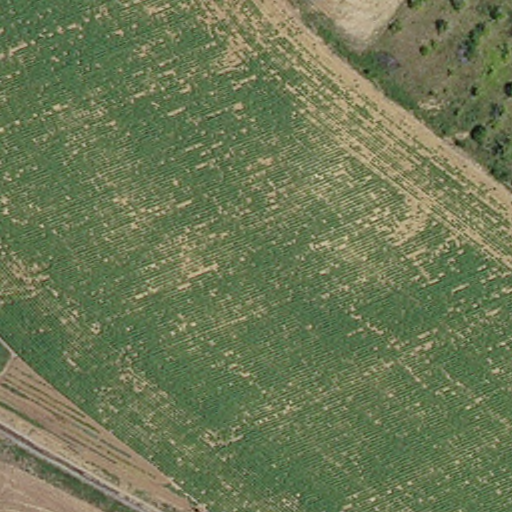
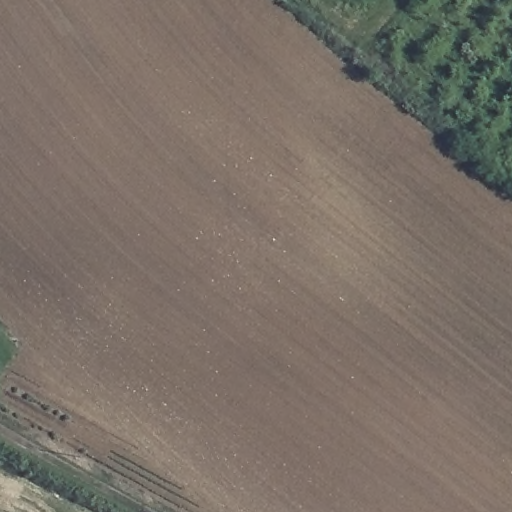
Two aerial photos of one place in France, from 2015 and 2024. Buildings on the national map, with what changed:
[]

